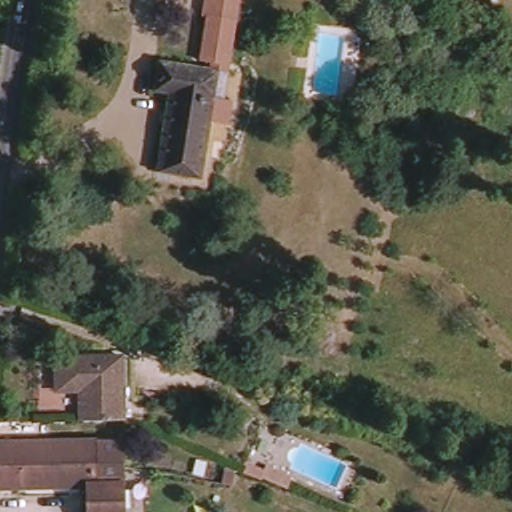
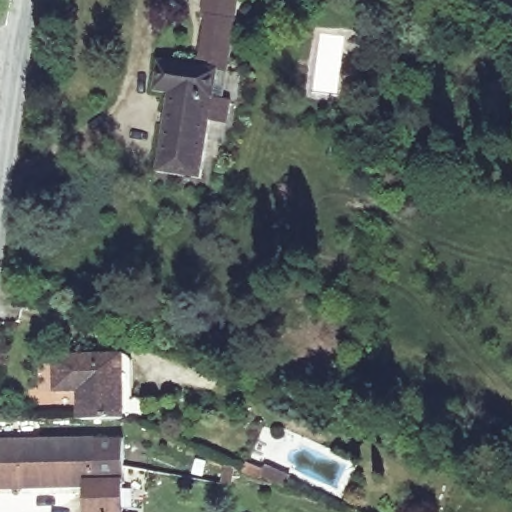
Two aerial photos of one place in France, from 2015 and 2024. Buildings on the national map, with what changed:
unchanged [(236,0),(225,63),(202,59),(210,15),(201,14),(203,0),(235,0),(236,0)]
unchanged [(158,173),(170,95),(154,93),(158,64),(216,72),(212,103),(225,104),(228,105),(225,125),(209,123),(200,179),(158,173)]
unchanged [(331,131),(349,133),(346,159),(329,157),(331,131)]
unchanged [(80,422),(79,396),(56,397),(55,362),(122,361),(122,422),(80,422)]
unchanged [(261,440),(268,443),(263,455),(256,452),(261,440)]
unchanged [(24,493),(23,445),(99,444),(99,492),(87,492),(24,493)]
unchanged [(87,492),(99,492),(99,444),(124,444),(124,472),(125,484),(122,485),(123,510),(123,512),(87,512),(87,500),(87,492)]
unchanged [(24,493),(0,493),(0,445),(23,445),(24,493)]
unchanged [(261,475),(266,465),(293,478),(288,487),(261,475)]

